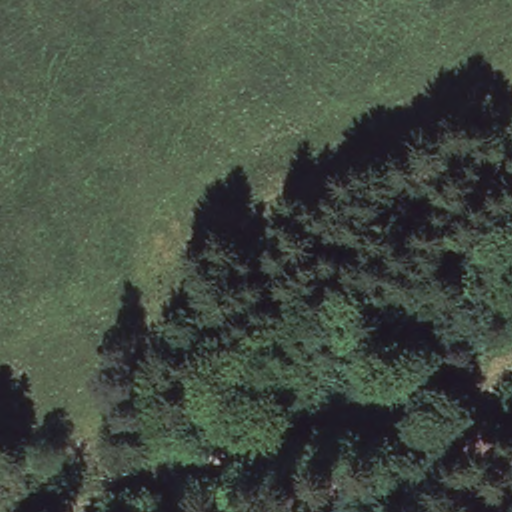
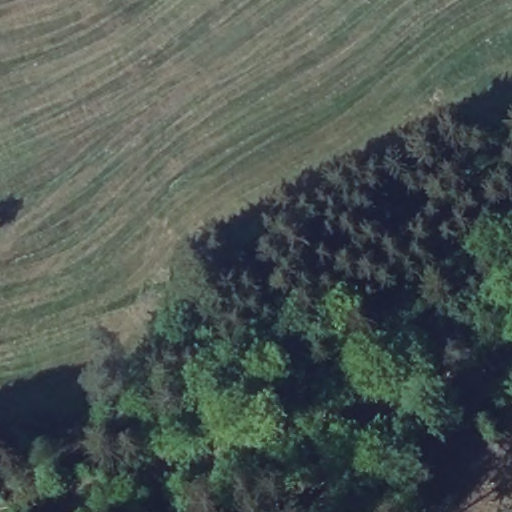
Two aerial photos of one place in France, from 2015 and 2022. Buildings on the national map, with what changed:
[]

